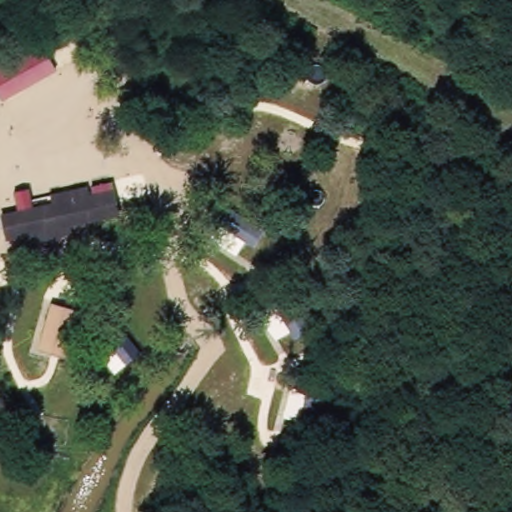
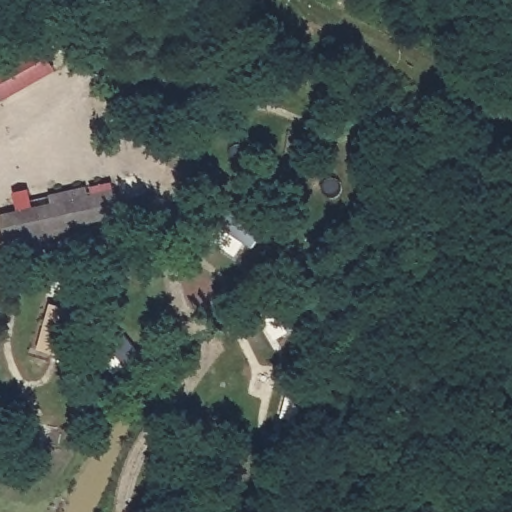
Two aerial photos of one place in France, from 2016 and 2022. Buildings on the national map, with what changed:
unchanged [(9,189),(25,185),(30,206),(51,201),(50,194),(86,185),(91,194),(115,188),(121,216),(72,226),(74,236),(33,245),(32,238),(5,244),(0,215),(0,212),(15,209),(9,189)]
unchanged [(42,296),(68,305),(53,349),(30,340),(42,296)]

